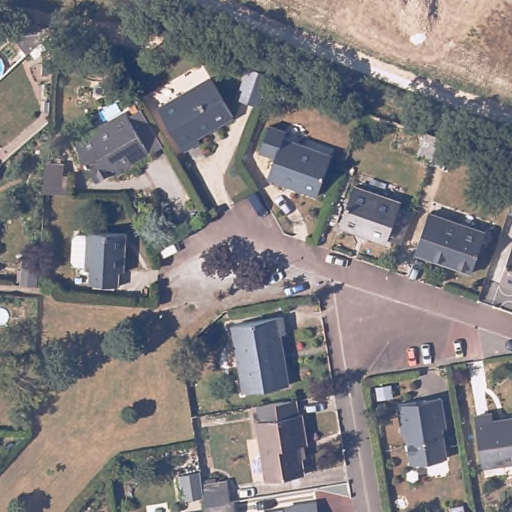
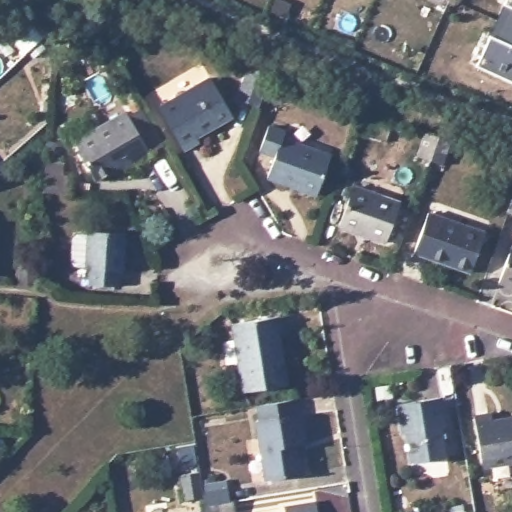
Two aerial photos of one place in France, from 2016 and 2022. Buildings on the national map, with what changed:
new [(477,66),(506,0),(512,0),(512,81),(477,66)]
unchanged [(15,45),(29,32),(39,42),(24,56),(15,45)]
unchanged [(236,100),(246,70),(268,76),(257,108),(236,100)]
unchanged [(211,75),(213,75),(235,114),(199,135),(202,139),(187,148),(161,105),(211,75)]
unchanged [(113,171),(94,182),(73,143),(124,113),(128,118),(139,112),(159,146),(147,153),(149,156),(125,171),(116,176),(113,171)]
unchanged [(272,125),(288,130),(286,138),(333,154),(319,194),(271,177),(278,156),(263,150),(272,125)]
unchanged [(438,167),(427,163),(415,159),(424,135),(436,139),(447,143),(438,167)]
unchanged [(43,178),(69,179),(68,196),(41,194),(43,178)]
unchanged [(399,236),(385,230),(384,236),(337,219),(351,179),(398,196),(396,200),(409,205),(399,236)]
unchanged [(505,214),(512,195),(512,217),(505,214)]
unchanged [(430,211),(488,231),(473,271),(416,251),(430,211)]
unchanged [(86,234),(124,236),(121,273),(116,273),(115,287),(87,285),(88,271),(84,271),(86,234)]
unchanged [(501,280),(512,247),(512,285),(501,280)]
unchanged [(280,318),(282,335),(279,335),(286,387),(243,394),(232,325),(280,318)]
unchanged [(413,403),(414,409),(421,407),(421,402),(438,400),(443,429),(439,429),(444,460),(408,466),(403,435),(399,436),(394,406),(413,403)]
unchanged [(304,463),(307,480),(269,486),(260,428),(263,427),(261,413),(299,407),(301,420),(304,420),(309,448),(308,449),(310,462),(304,463)]
unchanged [(494,407),(495,414),(512,412),(512,455),(484,459),(476,410),(494,407)]
unchanged [(202,497),(182,501),(178,476),(198,473),(200,485),(224,481),(226,490),(228,503),(233,502),(234,512),(204,512),(203,507),(202,497)]
unchanged [(314,505),(315,512),(282,512),(282,510),(314,505)]

